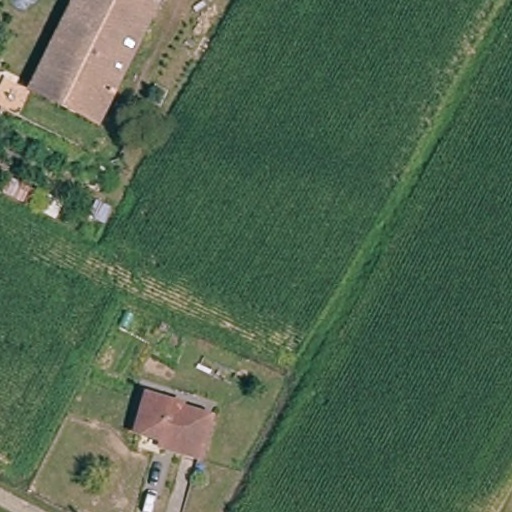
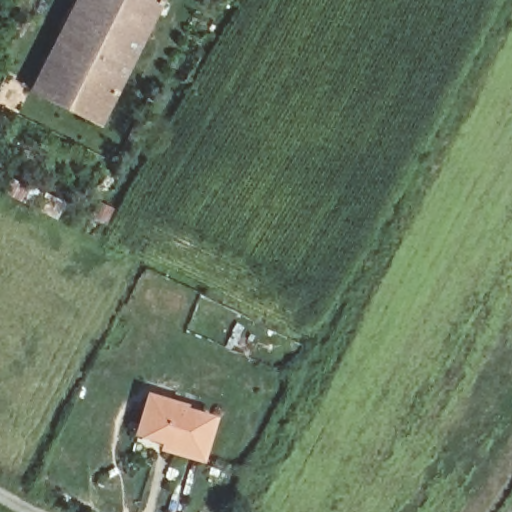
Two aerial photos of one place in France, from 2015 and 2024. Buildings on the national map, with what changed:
unchanged [(75,0),(155,0),(95,120),(33,87),(75,0)]
unchanged [(158,436),(134,429),(140,402),(142,394),(159,398),(177,403),(176,408),(207,417),(196,453),(178,448),(157,443),(158,436)]

